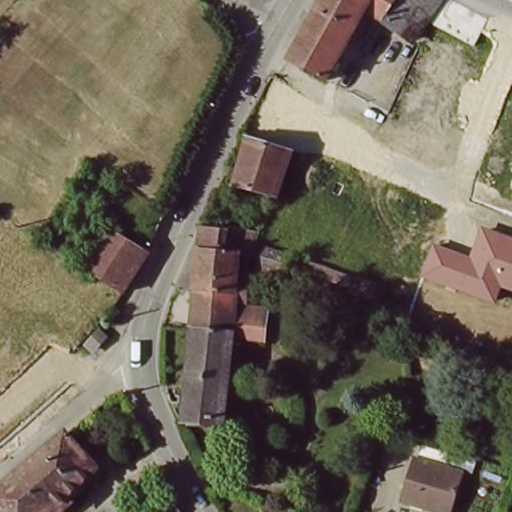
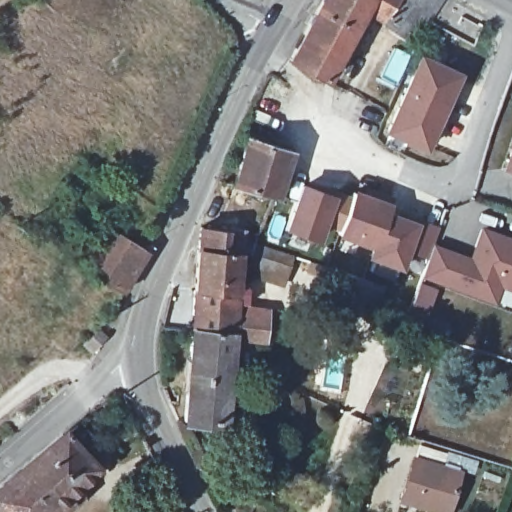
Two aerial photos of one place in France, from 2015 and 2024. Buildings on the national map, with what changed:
unchanged [(412,36),(362,9),(325,78),(288,58),(319,0),(432,0),(412,36)]
demolished [(453,9),(476,22),(466,42),(442,28),(453,9)]
new [(421,53),(463,73),(427,152),(384,132),(421,53)]
unchanged [(281,149),(290,152),(278,182),(274,193),(270,202),(241,192),(231,188),(246,138),(281,149)]
new [(512,145),(512,174),(503,170),(512,145)]
demolished [(432,159),(458,170),(448,193),(421,184),(432,159)]
new [(301,184),(315,188),(316,182),(353,195),(355,190),(393,202),(391,211),(439,225),(435,244),(430,259),(410,253),(405,269),(367,257),(370,248),(325,229),(321,241),(286,230),(301,184)]
unchanged [(129,289),(127,291),(126,293),(125,292),(86,266),(109,225),(149,250),(129,289)]
unchanged [(236,270),(236,281),(236,288),(236,296),(193,289),(201,231),(201,225),(244,233),(261,237),(257,245),(251,257),(240,254),(238,260),(236,268),(236,270)]
unchanged [(501,288),(494,304),(424,278),(435,244),(470,255),(480,228),(512,239),(512,292),(501,288)]
unchanged [(251,269),(255,258),(262,239),(264,239),(291,249),(284,268),(280,278),(251,269)]
unchanged [(221,426),(178,420),(186,349),(188,332),(193,289),(236,296),(236,288),(238,284),(249,289),(246,307),(264,312),(259,345),(231,340),(228,363),(221,426)]
unchanged [(86,345),(98,332),(106,339),(102,344),(100,342),(91,350),(86,345)]
unchanged [(43,452),(46,450),(68,433),(97,470),(65,500),(72,507),(66,512),(57,512),(55,509),(51,512),(0,512),(0,485),(10,478),(43,452)]
unchanged [(400,499),(411,460),(422,463),(456,473),(447,505),(445,512),(441,512),(420,505),(400,499)]

